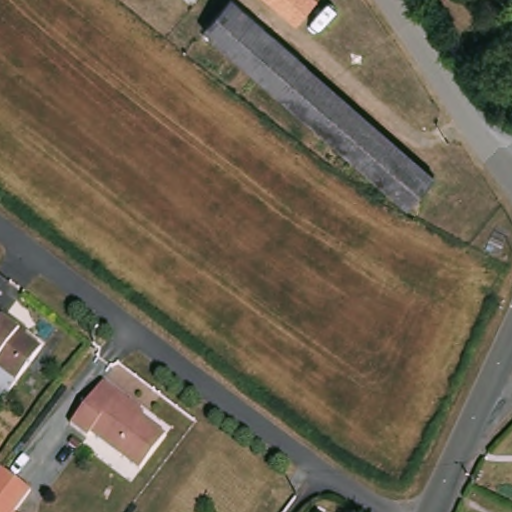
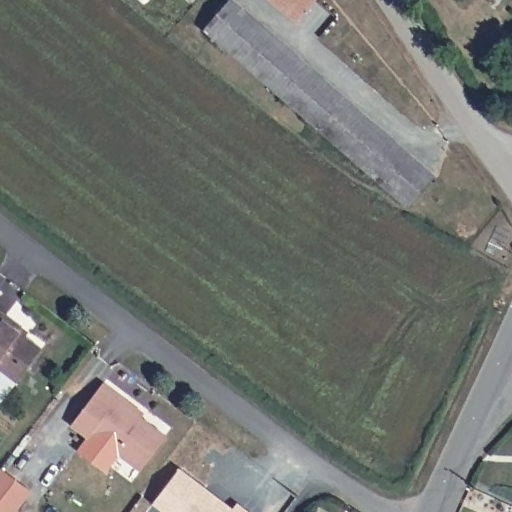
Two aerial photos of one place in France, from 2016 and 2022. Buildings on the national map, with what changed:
unchanged [(433,172),(407,206),(196,34),(224,0),(225,0),(433,172)]
unchanged [(295,22),(270,0),(314,0),(295,22)]
unchanged [(3,315),(0,318),(0,312),(3,315)]
unchanged [(39,350),(14,384),(0,373),(0,318),(39,350)]
unchanged [(114,391),(115,402),(156,437),(129,471),(68,423),(101,380),(114,391)]
new [(236,504),(247,512),(162,512),(152,505),(179,470),(232,509),(236,504)]
unchanged [(27,493),(14,512),(0,512),(0,471),(27,493)]

